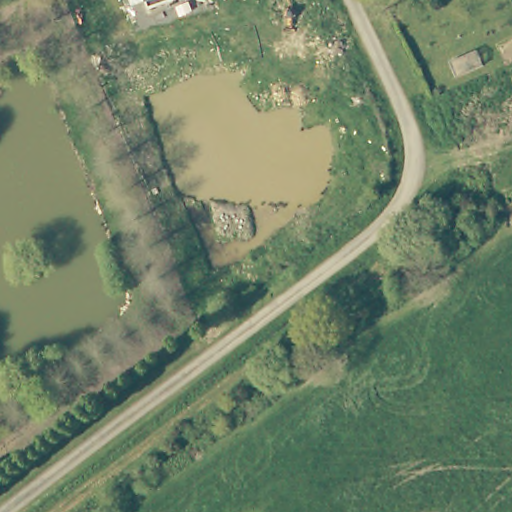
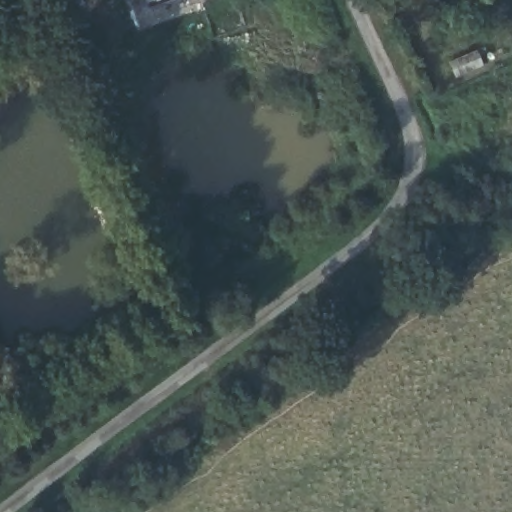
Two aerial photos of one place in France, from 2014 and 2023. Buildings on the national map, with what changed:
unchanged [(143,7),(141,0),(165,0),(143,7)]

